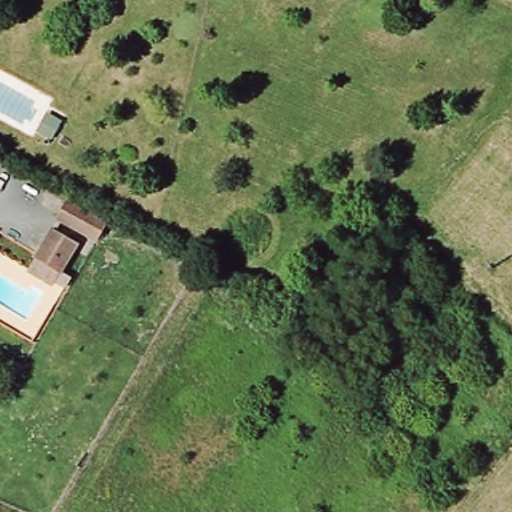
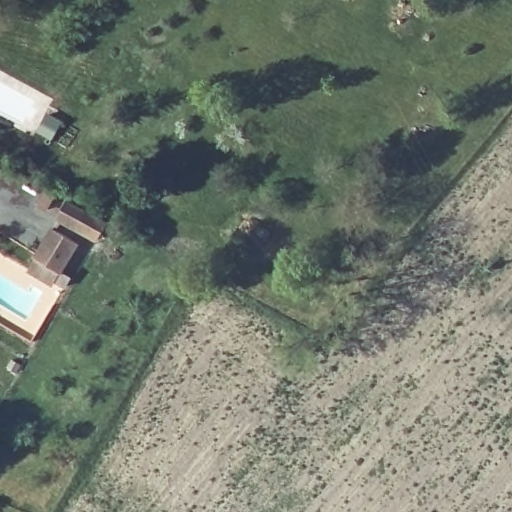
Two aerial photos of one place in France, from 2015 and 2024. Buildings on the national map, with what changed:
unchanged [(96,244),(60,224),(71,206),(106,226),(96,244)]
unchanged [(55,287),(31,273),(38,261),(55,233),(79,247),(62,275),(74,281),(67,292),(57,285),(55,287)]

